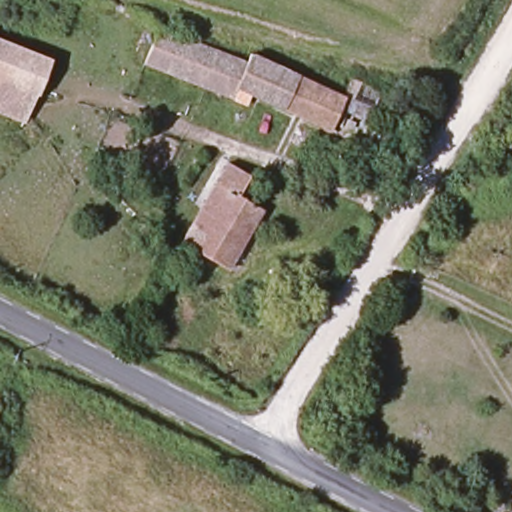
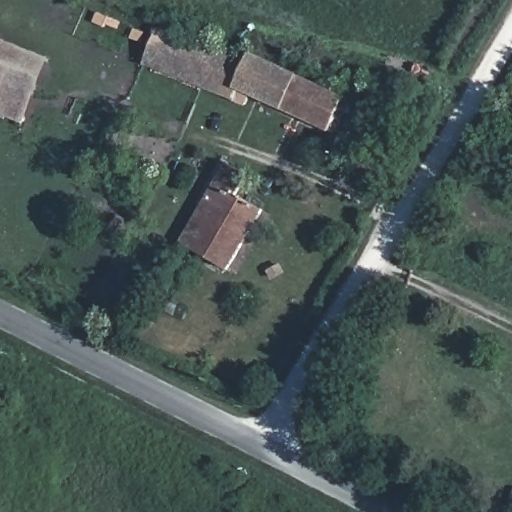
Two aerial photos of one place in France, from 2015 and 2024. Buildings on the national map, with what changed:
unchanged [(155,34),(247,69),(251,60),(347,99),(330,139),(248,100),(244,111),(142,72),(155,34)]
unchanged [(24,126),(0,116),(0,48),(44,69),(24,126)]
unchanged [(178,250),(221,166),(247,180),(237,201),(261,216),(229,277),(178,250)]

